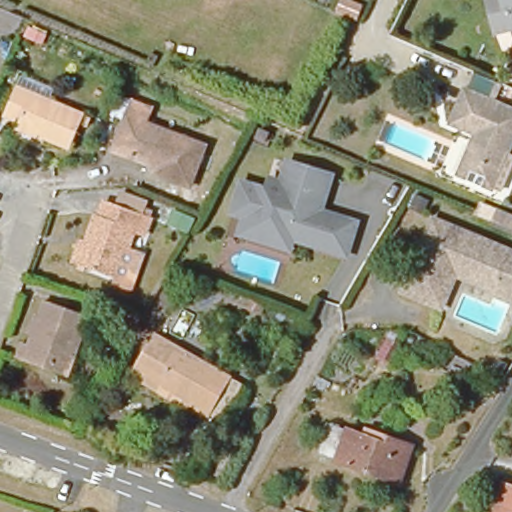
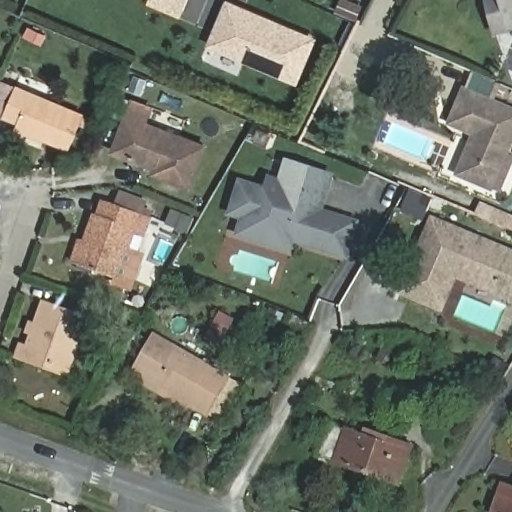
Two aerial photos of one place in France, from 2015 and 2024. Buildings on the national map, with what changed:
new [(155,0),(186,0),(182,11),(155,0)]
unchanged [(497,34),(490,0),(512,0),(512,30),(497,34)]
new [(229,4),(243,10),(311,39),(295,79),(212,44),(227,9),(229,4)]
unchanged [(47,100),(84,116),(70,148),(17,126),(19,121),(4,115),(16,87),(47,100)]
unchanged [(497,184),(463,170),(480,129),(455,119),(463,99),(512,120),(512,148),(497,184)]
unchanged [(150,109),(145,123),(205,146),(189,187),(154,173),(156,167),(114,150),(132,102),(150,109)]
unchanged [(244,211),(231,207),(240,178),(266,186),(270,174),(281,178),(287,158),(328,170),(317,207),(353,218),(344,249),(291,232),(287,243),(256,233),(239,228),(244,211)]
unchanged [(118,209),(123,195),(153,206),(151,213),(157,215),(155,222),(150,239),(139,235),(133,252),(149,258),(136,294),(119,288),(121,284),(76,268),(84,243),(91,245),(101,219),(104,220),(109,205),(118,209)]
unchanged [(512,213),(512,224),(483,212),(487,203),(512,213)]
unchanged [(171,212),(192,219),(187,233),(166,224),(171,212)]
unchanged [(498,293),(472,281),(470,274),(460,270),(458,275),(443,309),(404,292),(436,219),(512,252),(512,298),(498,293)]
unchanged [(44,301),(89,317),(67,377),(16,359),(22,343),(28,344),(44,301)]
unchanged [(229,377),(208,414),(134,372),(155,335),(229,377)]
unchanged [(412,445),(398,484),(316,454),(327,422),(365,435),(367,429),(412,445)]
unchanged [(512,487),(512,512),(493,512),(503,484),(512,487)]

